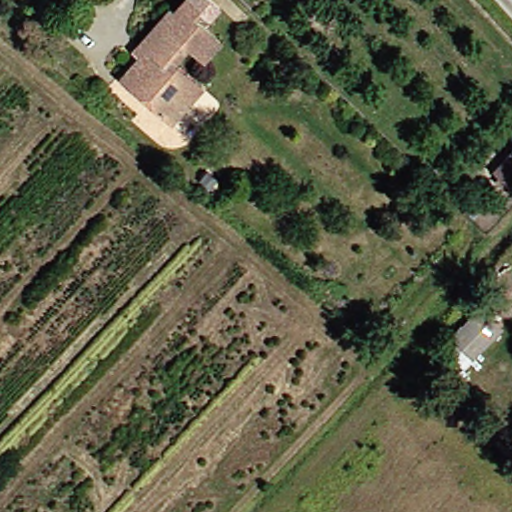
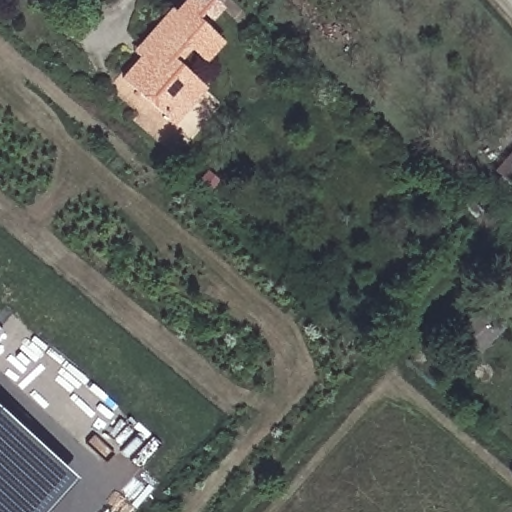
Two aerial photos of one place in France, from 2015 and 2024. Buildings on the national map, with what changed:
unchanged [(191,105),(177,120),(129,79),(143,64),(135,55),(143,45),(173,10),(176,14),(188,0),(193,0),(204,10),(196,19),(222,41),(206,60),(185,40),(172,55),(207,86),(191,105)]
unchanged [(497,175),(512,158),(512,187),(497,175)]
unchanged [(449,338),(476,309),(497,330),(471,359),(449,338)]
new [(0,447),(0,410),(79,476),(49,512),(32,512),(51,490),(0,447)]
new [(32,512),(0,512),(0,447),(51,490),(32,512)]

